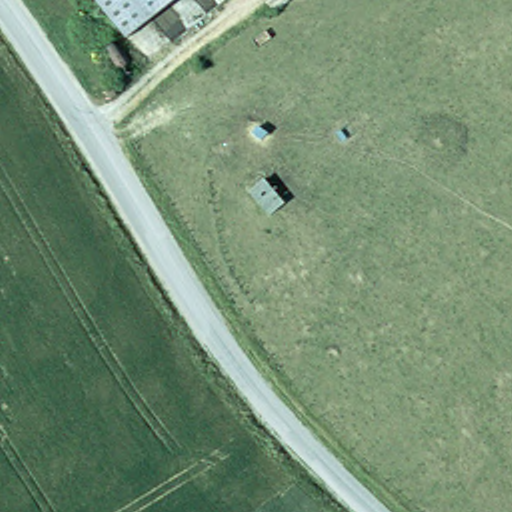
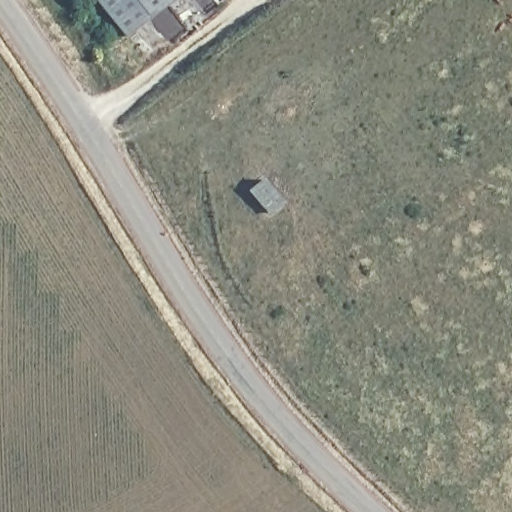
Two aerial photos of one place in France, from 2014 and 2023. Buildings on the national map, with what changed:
unchanged [(94,0),(157,0),(118,30),(94,0)]
unchanged [(247,191),(261,180),(280,203),(267,214),(247,191)]

